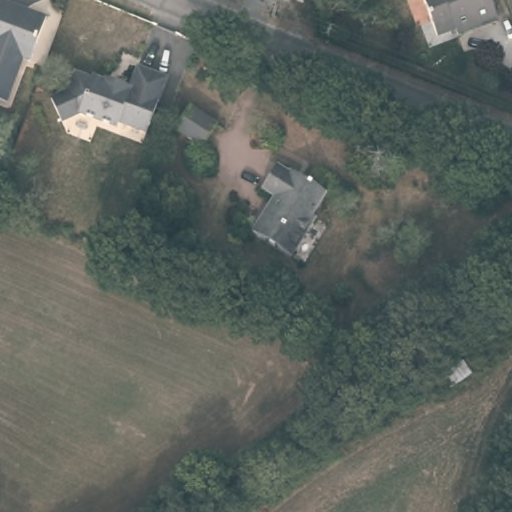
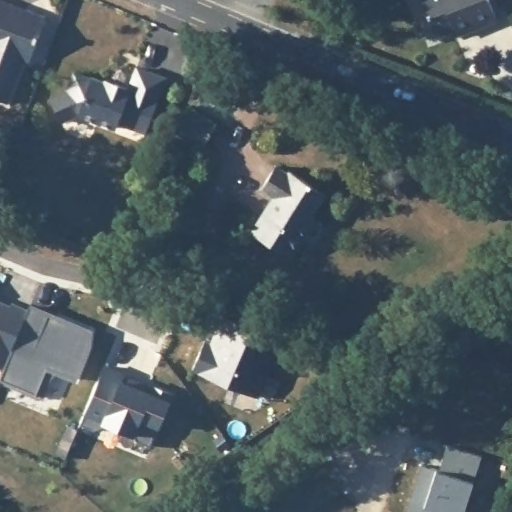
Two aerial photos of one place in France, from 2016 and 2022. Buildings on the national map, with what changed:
unchanged [(455,32),(437,38),(424,0),(498,0),(491,2),(499,24),(478,31),(457,37),(455,32)]
unchanged [(302,5),(299,15),(291,12),(295,2),(302,5)]
unchanged [(20,14),(40,22),(23,66),(16,64),(0,107),(0,6),(7,9),(20,14)]
unchanged [(166,75),(145,129),(118,119),(116,125),(78,111),(61,117),(52,93),(69,87),(75,69),(92,76),(93,74),(104,79),(103,81),(114,85),(115,80),(129,85),(137,64),(166,75)]
unchanged [(216,122),(196,150),(172,130),(193,102),(216,122)]
unchanged [(285,263),(247,240),(270,202),(257,195),(273,171),(283,179),(288,176),(325,198),(285,263)]
new [(11,303),(27,311),(1,370),(0,369),(0,302),(10,306),(11,303)]
new [(27,311),(29,306),(88,332),(87,347),(73,379),(45,367),(33,395),(0,381),(0,373),(1,370),(27,311)]
new [(204,342),(217,348),(222,336),(215,333),(222,317),(281,343),(257,400),(192,372),(204,342)]
new [(105,364),(126,372),(124,376),(161,388),(176,392),(172,401),(169,400),(150,446),(104,425),(94,430),(79,424),(105,364)]
new [(439,471),(447,445),(482,456),(464,512),(406,512),(422,465),(439,471)]

